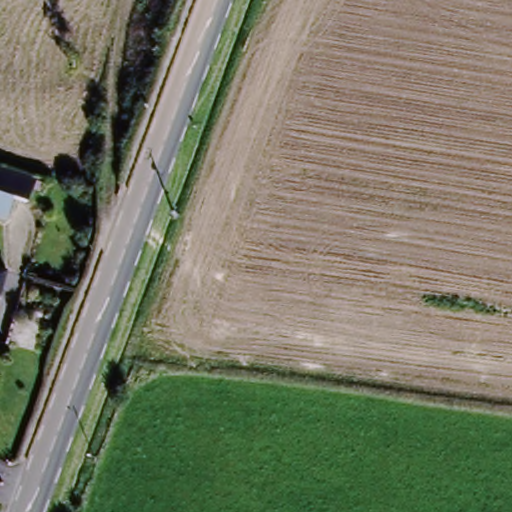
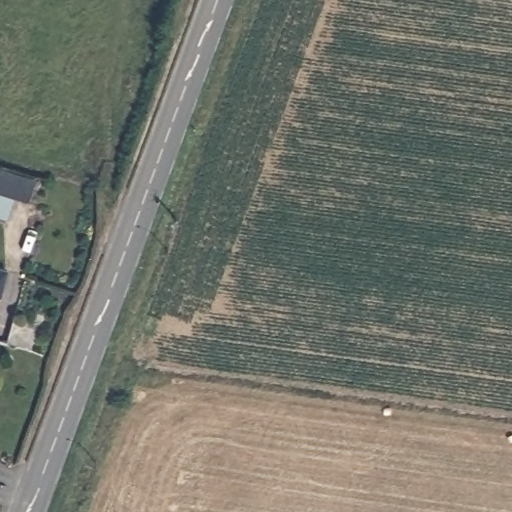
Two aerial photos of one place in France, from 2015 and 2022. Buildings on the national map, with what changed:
unchanged [(24,179),(9,229),(0,226),(0,172),(24,179)]
unchanged [(15,277),(7,303),(0,301),(0,273),(15,277)]

